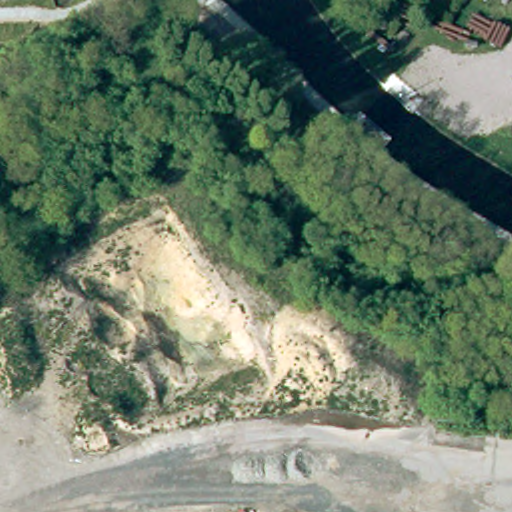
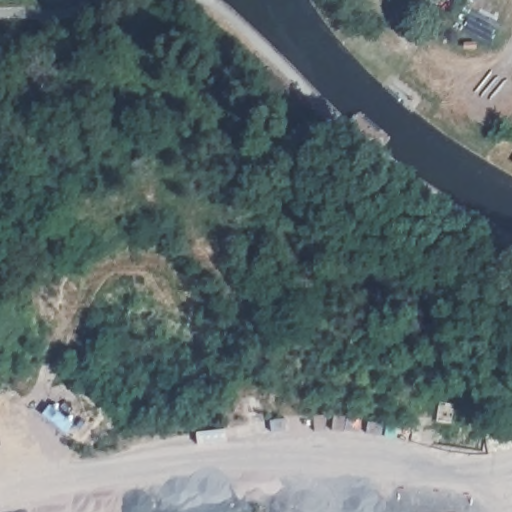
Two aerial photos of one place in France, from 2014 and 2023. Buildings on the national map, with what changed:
unchanged [(457,405),(455,421),(439,418),(442,402),(457,405)]

